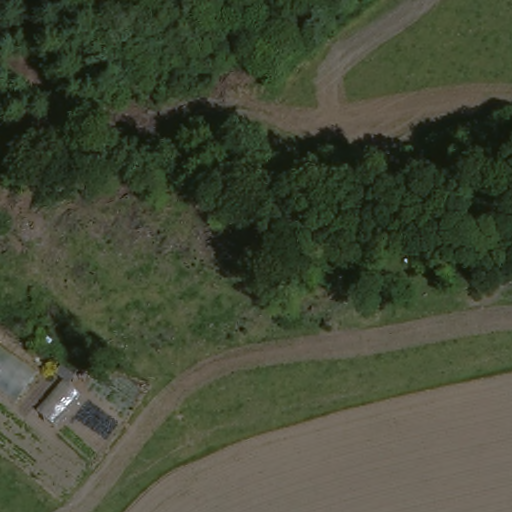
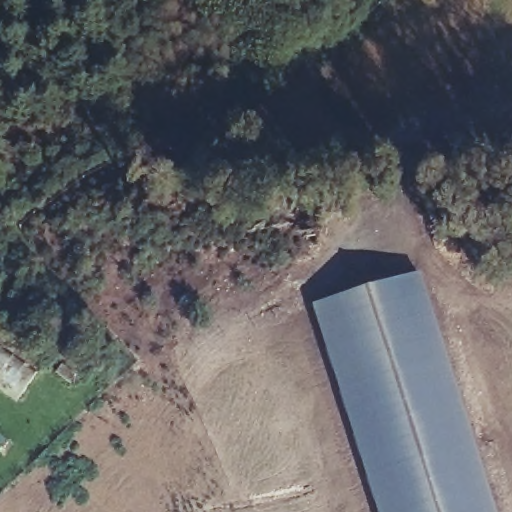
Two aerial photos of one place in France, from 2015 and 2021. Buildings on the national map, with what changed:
new [(308,307),(419,273),(494,512),(373,512),(308,307)]

